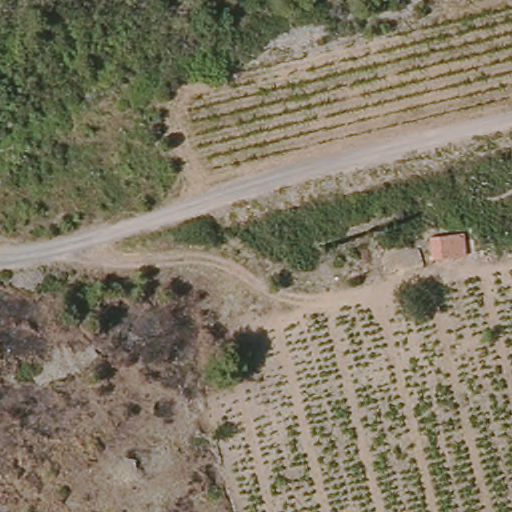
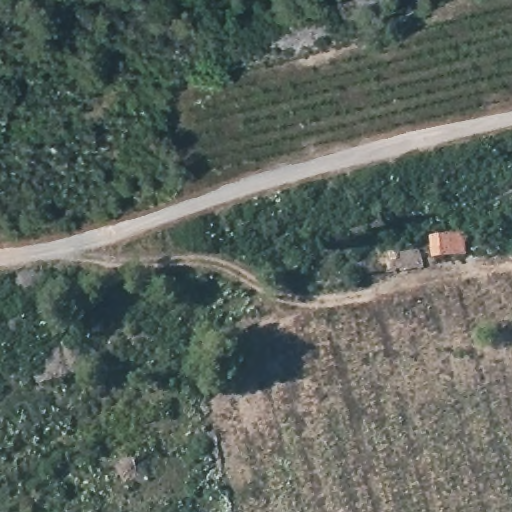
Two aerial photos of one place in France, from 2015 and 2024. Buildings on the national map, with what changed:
unchanged [(463,255),(430,259),(429,239),(460,234),(463,255)]

